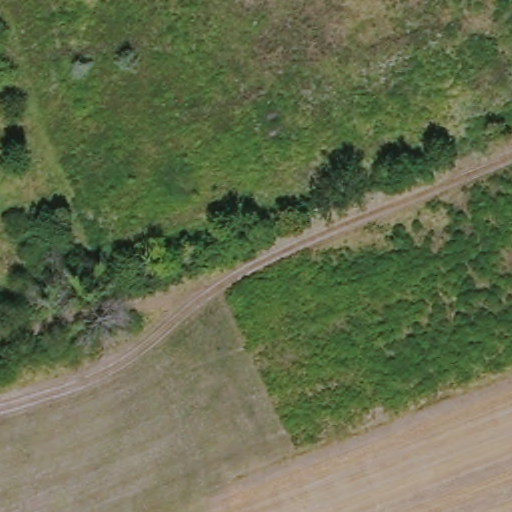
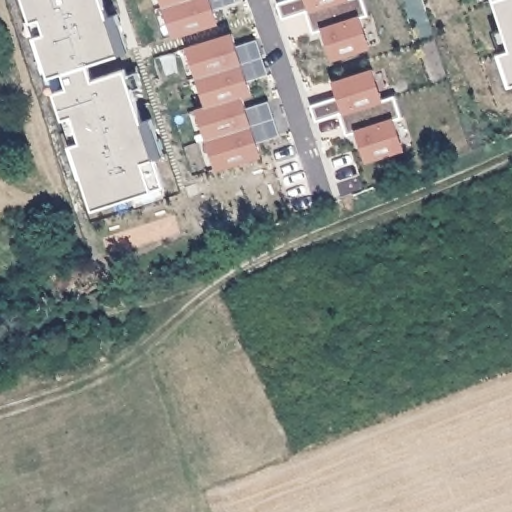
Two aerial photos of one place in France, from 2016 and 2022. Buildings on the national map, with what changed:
new [(106,17),(119,14),(130,50),(117,53),(88,63),(93,79),(125,69),(142,121),(151,118),(163,156),(153,158),(163,185),(150,189),(92,208),(71,145),(80,142),(73,114),(61,117),(55,93),(68,88),(63,70),(49,76),(36,36),(46,33),(41,17),(30,20),(25,0),(101,0),(106,17)]
new [(218,23),(174,38),(161,0),(211,0),(218,23)]
new [(370,15),(361,18),(370,48),(333,59),(324,30),(313,32),(305,13),(282,19),(276,2),(284,0),(365,0),(370,15)]
new [(500,53),(510,49),(495,0),(512,0),(512,84),(510,84),(500,53)]
new [(216,172),(195,109),(205,106),(187,46),(232,33),(252,95),(243,98),(261,158),(216,172)]
new [(383,99),(395,95),(400,115),(394,117),(405,149),(365,162),(355,132),(346,135),(339,116),(315,122),(310,104),(338,96),(332,80),(372,67),(383,99)]

